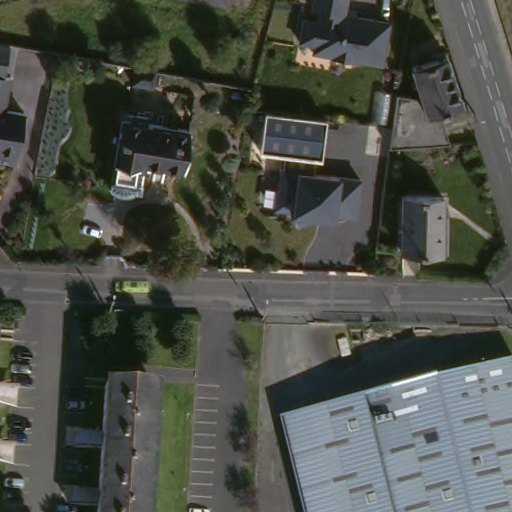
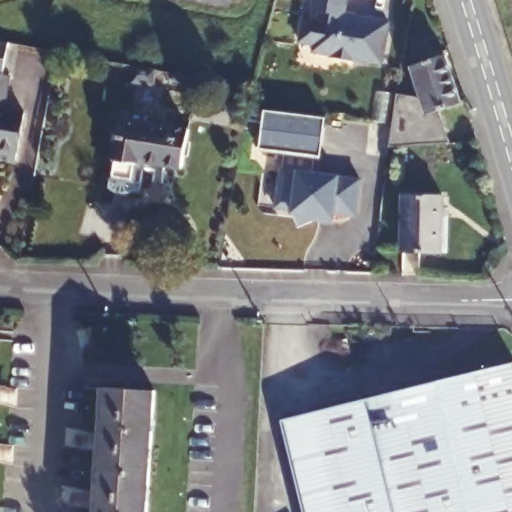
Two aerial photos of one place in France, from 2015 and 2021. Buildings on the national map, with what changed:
unchanged [(355,63),(334,60),(334,57),(315,55),(316,47),(300,45),(302,32),(304,23),(319,25),(320,15),(312,14),(314,0),(346,0),(344,17),(388,24),(385,52),(382,64),(355,60),(355,63)]
unchanged [(11,40),(5,76),(12,76),(7,110),(27,114),(20,161),(0,158),(0,38),(7,40),(11,40)]
unchanged [(447,140),(416,145),(392,149),(395,134),(396,128),(401,95),(427,100),(416,66),(448,56),(462,102),(440,110),(447,140)]
unchanged [(159,73),(155,89),(135,85),(136,70),(136,69),(159,73)]
unchanged [(195,125),(185,166),(150,161),(142,191),(113,186),(128,113),(195,125)]
unchanged [(327,120),(323,163),(257,156),(264,114),(327,120)]
unchanged [(367,179),(364,217),(342,215),(333,225),(296,225),(290,213),(278,211),(284,171),(367,179)]
unchanged [(444,195),(444,249),(403,248),(403,195),(444,195)]
unchanged [(512,358),(512,512),(310,512),(284,424),(512,358)]
unchanged [(167,393),(159,512),(104,512),(110,390),(167,393)]

